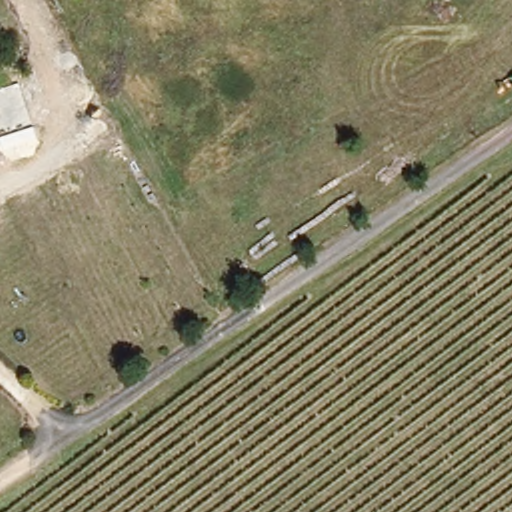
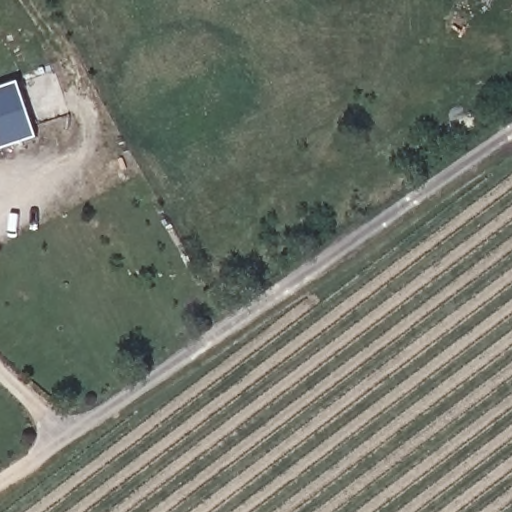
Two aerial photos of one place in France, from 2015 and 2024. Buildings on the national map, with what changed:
new [(21,81),(40,136),(1,150),(0,147),(0,89),(21,81)]
unchanged [(1,150),(0,150),(0,147),(1,150)]

